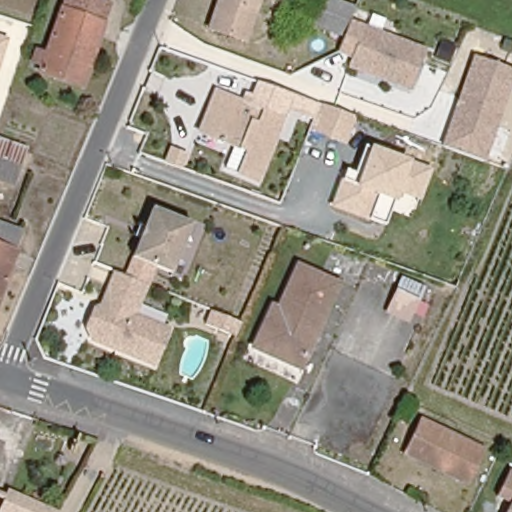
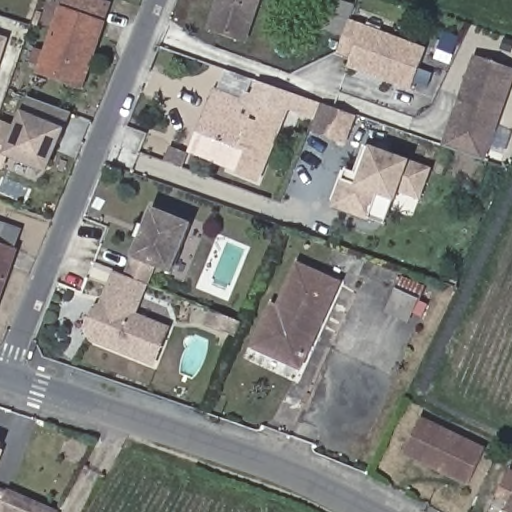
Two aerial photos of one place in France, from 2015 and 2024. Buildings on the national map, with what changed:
unchanged [(100,22),(102,24),(79,85),(39,70),(59,9),(61,9),(64,0),(99,0),(107,3),(100,22)]
unchanged [(209,28),(218,0),(258,0),(244,40),(209,28)]
unchanged [(351,17),(425,47),(409,87),(347,64),(348,57),(338,54),(341,37),(309,25),(323,0),(343,0),(357,4),(351,17)]
unchanged [(0,65),(0,35),(9,38),(0,65)]
unchanged [(512,72),(512,74),(481,162),(441,147),(473,58),(512,72)]
unchanged [(219,142),(222,137),(203,129),(219,92),(285,117),(260,179),(241,172),(249,149),(228,140),(225,144),(219,142)]
new [(29,96),(69,112),(46,167),(5,152),(29,96)]
unchanged [(347,145),(312,132),(316,121),(300,117),(307,99),(357,117),(347,145)]
unchanged [(435,171),(424,202),(399,193),(387,226),(331,209),(340,182),(355,186),(368,146),(411,162),(435,171)]
unchanged [(189,222),(169,272),(130,255),(150,207),(189,222)]
unchanged [(12,250),(15,251),(0,292),(0,224),(18,231),(12,250)]
unchanged [(143,282),(129,310),(169,330),(153,362),(93,333),(89,322),(98,305),(103,303),(105,297),(102,296),(113,270),(143,282)]
unchanged [(334,293),(304,357),(258,336),(277,295),(283,297),(294,275),(334,293)]
unchanged [(426,283),(419,298),(428,302),(421,314),(413,310),(407,320),(386,308),(394,290),(403,276),(426,283)]
unchanged [(239,320),(234,332),(204,320),(209,307),(239,320)]
unchanged [(466,486),(401,454),(418,421),(482,452),(466,486)]
unchanged [(0,443),(4,445),(0,456),(0,443)]
unchanged [(512,472),(512,512),(503,512),(508,502),(494,495),(508,470),(512,472)]
unchanged [(7,495),(51,512),(0,512),(7,495)]

